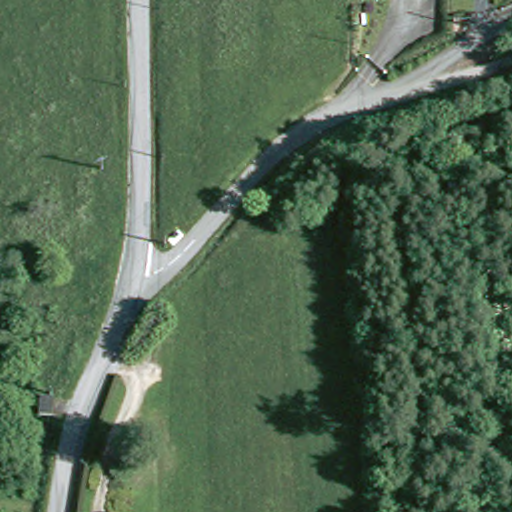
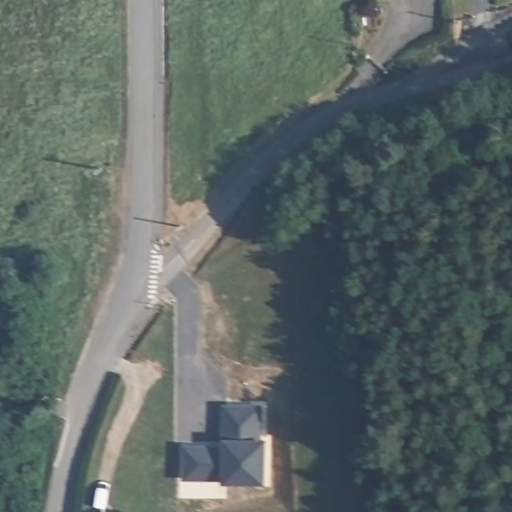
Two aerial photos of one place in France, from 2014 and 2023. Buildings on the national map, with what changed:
new [(183,446),(223,447),(223,441),(222,441),(222,406),(257,407),(255,441),(262,441),(260,481),(223,480),(223,477),(183,476),(183,446)]

